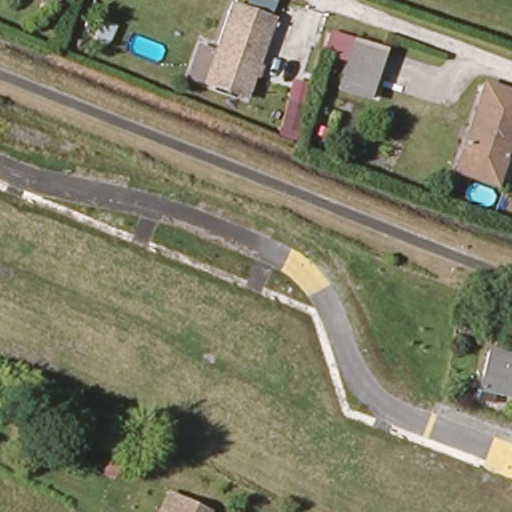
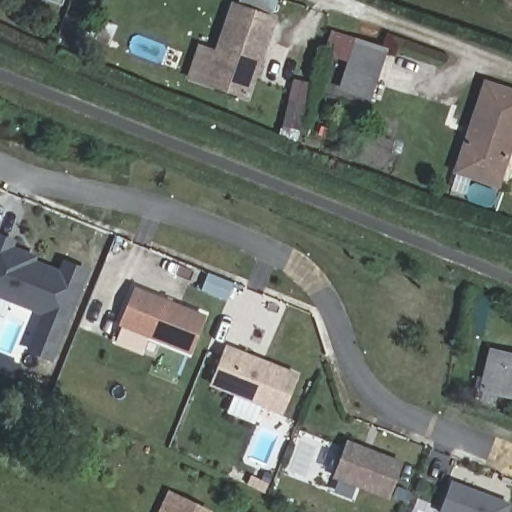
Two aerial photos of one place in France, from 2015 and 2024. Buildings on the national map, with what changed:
unchanged [(210,49),(223,54),(240,5),(279,19),(273,35),(276,37),(254,100),(212,85),(199,80),(210,49)]
unchanged [(338,91),(347,63),(326,56),(327,53),(324,53),(330,34),(354,42),(382,52),(366,100),(338,91)]
unchanged [(454,174),(456,166),(465,142),(469,144),(472,134),(468,133),(484,86),(512,96),(512,139),(498,180),(495,188),(454,174)]
unchanged [(306,128),(290,124),(297,99),(312,102),(306,128)]
new [(0,297),(0,234),(16,239),(14,246),(38,254),(36,260),(64,270),(48,315),(0,297)]
new [(191,354),(118,324),(134,285),(207,314),(191,354)]
new [(283,415),(209,385),(226,344),(299,372),(283,415)]
unchanged [(512,353),(512,394),(483,386),(492,349),(493,348),(508,352),(512,353)]
new [(389,499),(332,478),(347,438),(403,460),(389,499)]
new [(489,494),(497,496),(512,503),(512,506),(510,512),(447,512),(443,510),(455,480),(489,494)]
unchanged [(166,494),(203,512),(158,512),(166,494)]

